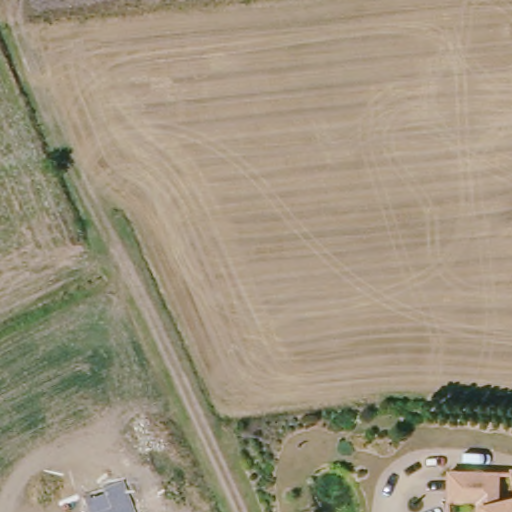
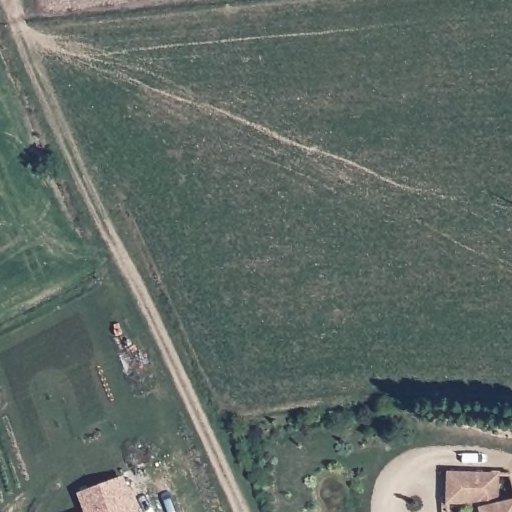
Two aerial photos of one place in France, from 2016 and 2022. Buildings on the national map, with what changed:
unchanged [(447,506),(449,475),(492,477),(499,506),(512,504),(512,512),(477,512),(477,507),(447,506)]
new [(123,480),(137,512),(82,512),(77,499),(123,480)]

